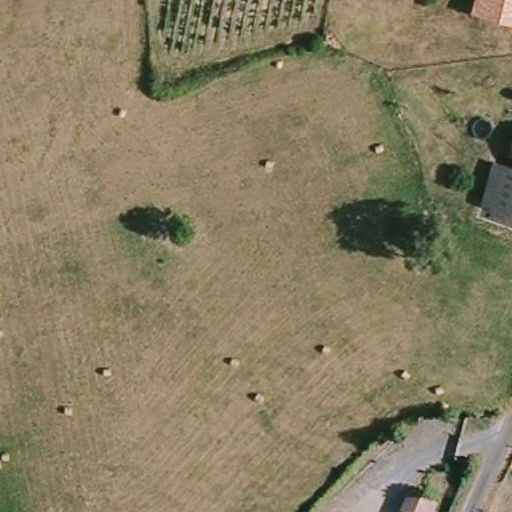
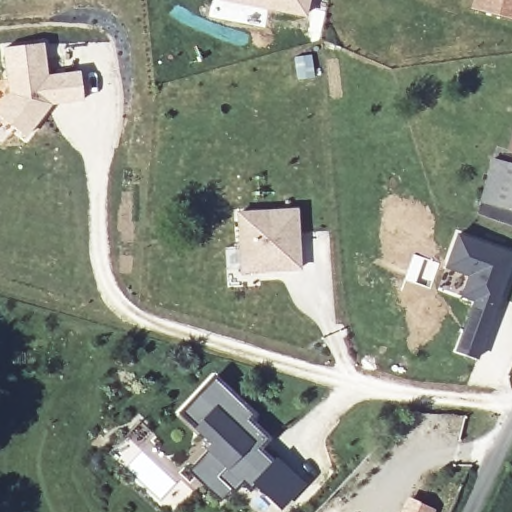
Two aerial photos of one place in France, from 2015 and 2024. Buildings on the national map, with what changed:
new [(306,14),(234,0),(309,0),(306,14)]
unchanged [(475,0),(512,0),(512,19),(472,9),(475,0)]
new [(7,94),(2,48),(43,44),(47,76),(80,72),(83,101),(49,105),(27,137),(0,118),(0,103),(7,94)]
unchanged [(512,165),(512,205),(492,200),(503,162),(512,165)]
new [(297,209),(301,267),(242,271),(239,212),(297,209)]
new [(470,275),(447,266),(458,234),(512,253),(512,265),(497,307),(486,335),(465,328),(476,300),(462,295),(470,275)]
new [(254,414),(249,420),(269,438),(260,450),(270,460),(277,455),(307,483),(282,511),(254,485),(249,490),(242,483),(234,493),(231,490),(219,502),(187,473),(212,447),(177,412),(212,375),(254,414)]
new [(436,509),(435,512),(399,512),(407,495),(436,509)]

